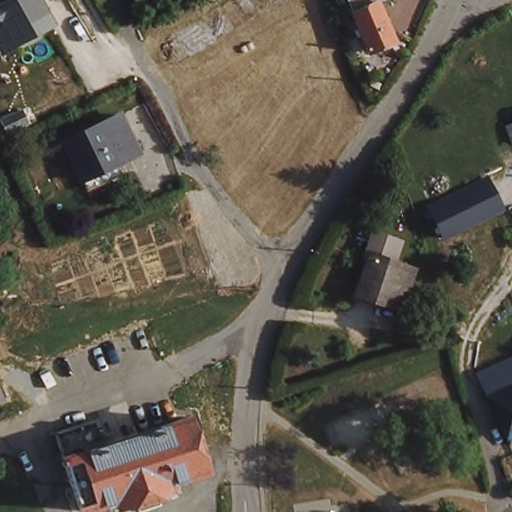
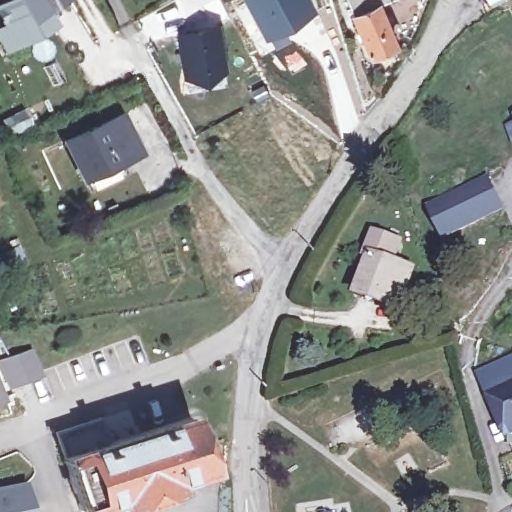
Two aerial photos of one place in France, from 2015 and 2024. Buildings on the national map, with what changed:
unchanged [(10,29),(0,12),(0,9),(16,0),(41,0),(55,25),(19,44),(10,49),(0,34),(10,29)]
new [(283,25),(291,41),(275,49),(245,0),(312,0),(316,8),(283,25)]
unchanged [(366,48),(361,37),(357,39),(351,25),(356,23),(346,0),(374,0),(390,38),(366,48)]
new [(184,76),(175,30),(218,24),(226,69),(184,76)]
unchanged [(111,165),(113,170),(85,183),(80,174),(77,175),(60,137),(114,110),(132,149),(127,151),(130,156),(111,165)]
unchanged [(487,176),(502,208),(444,236),(429,204),(487,176)]
unchanged [(362,279),(372,252),(366,250),(374,229),(400,238),(392,259),(411,266),(398,300),(378,293),(360,286),(362,279)]
new [(0,368),(0,360),(32,349),(43,376),(8,389),(0,368)]
unchanged [(512,384),(489,394),(478,369),(512,355),(512,384)]
unchanged [(512,440),(510,441),(489,394),(512,384),(512,440)]
new [(0,402),(0,386),(5,400),(0,402)]
unchanged [(100,418),(108,442),(188,416),(205,471),(175,481),(175,484),(158,491),(162,503),(140,510),(137,498),(118,504),(117,499),(81,511),(55,433),(100,418)]
new [(28,482),(34,512),(0,512),(0,487),(28,482)]

